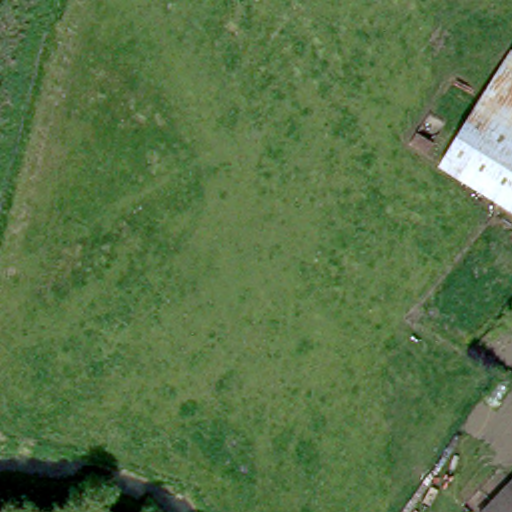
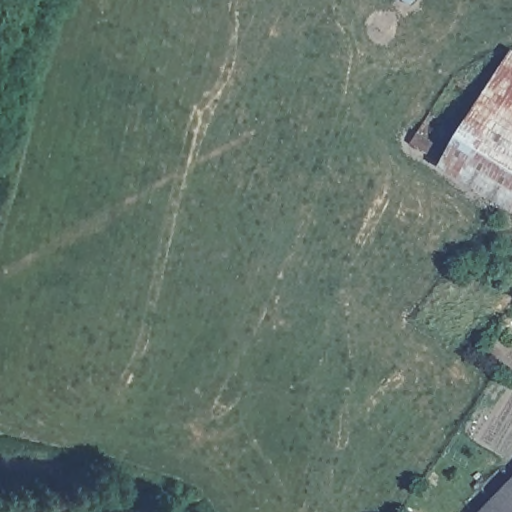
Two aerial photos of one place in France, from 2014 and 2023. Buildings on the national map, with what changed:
unchanged [(512,61),(512,63),(511,62),(512,61)]
unchanged [(512,63),(512,199),(451,161),(494,91),(497,86),(511,62),(512,63)]
unchanged [(417,152),(402,142),(407,131),(423,141),(417,152)]
unchanged [(512,485),(512,512),(491,512),(512,485)]

